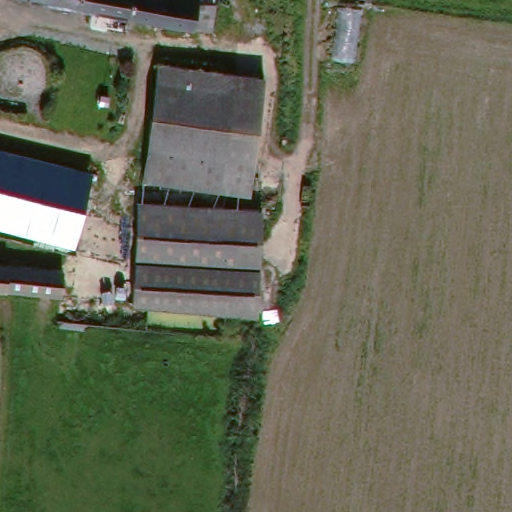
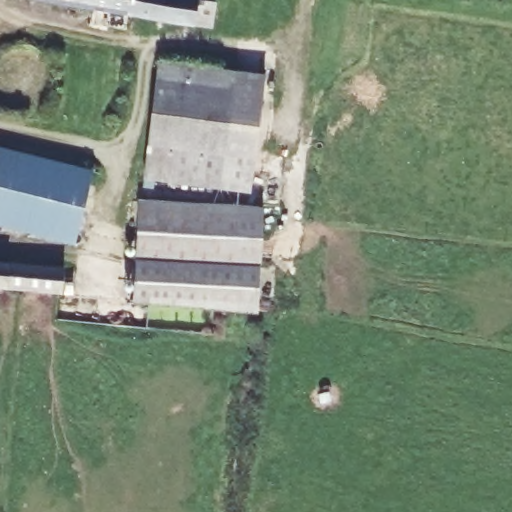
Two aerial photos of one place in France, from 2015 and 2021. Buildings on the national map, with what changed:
unchanged [(206,4),(203,30),(11,0),(188,0),(188,1),(206,4)]
unchanged [(220,143),(146,127),(156,81),(160,64),(211,71),(233,75),(220,143)]
unchanged [(233,75),(263,80),(243,190),(241,204),(228,204),(133,195),(138,176),(211,189),(220,143),(233,75)]
unchanged [(146,127),(220,143),(211,189),(138,176),(146,127)]
unchanged [(76,244),(0,226),(0,148),(92,169),(76,244)]
unchanged [(228,207),(241,208),(259,210),(248,307),(123,295),(133,195),(228,204),(228,207)]
unchanged [(0,291),(0,268),(61,277),(58,300),(0,291)]

